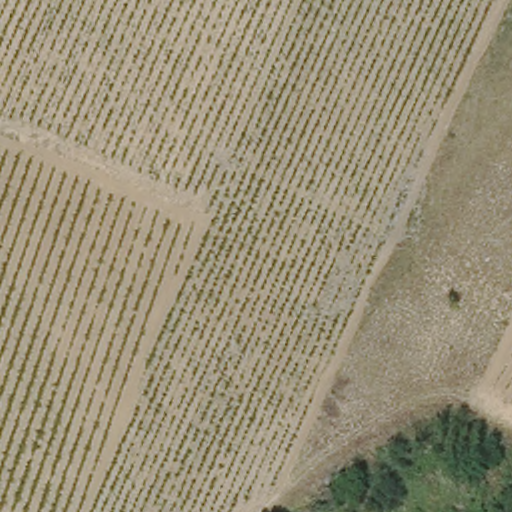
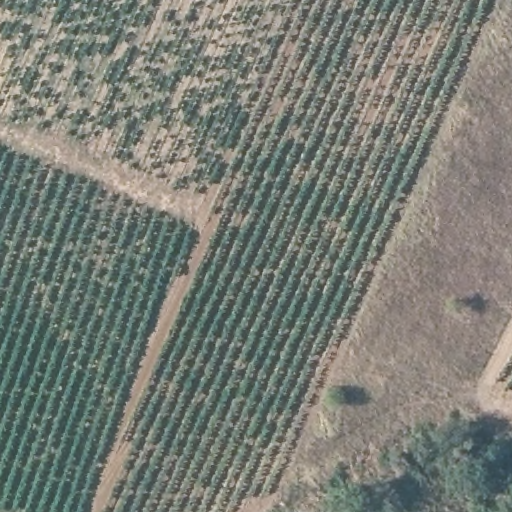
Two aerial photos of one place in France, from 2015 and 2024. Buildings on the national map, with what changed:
[]

